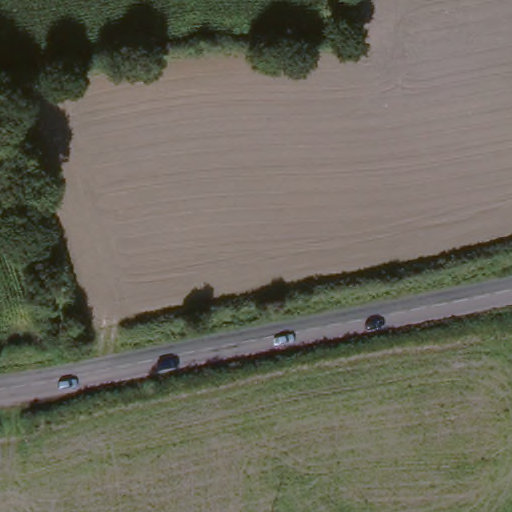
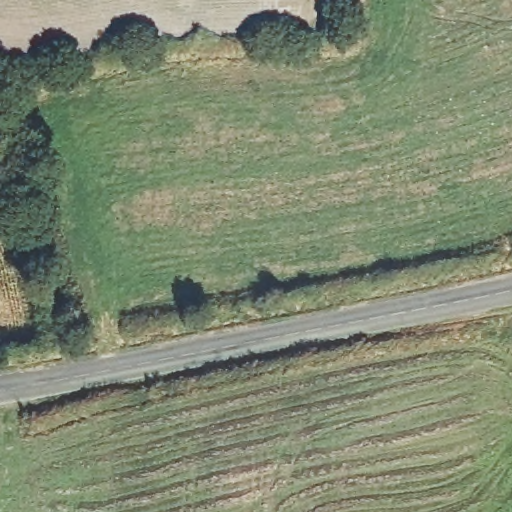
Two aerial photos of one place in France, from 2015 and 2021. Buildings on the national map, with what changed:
[]

